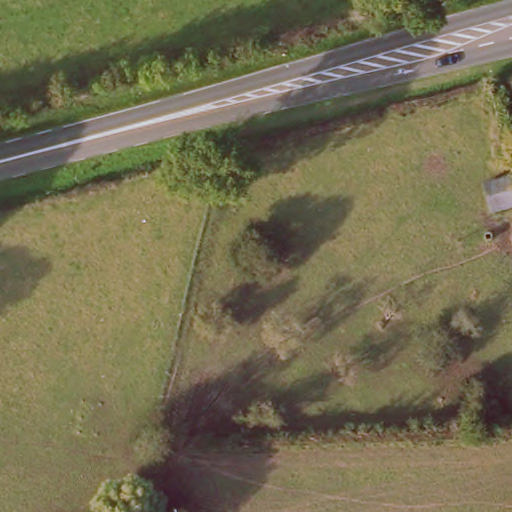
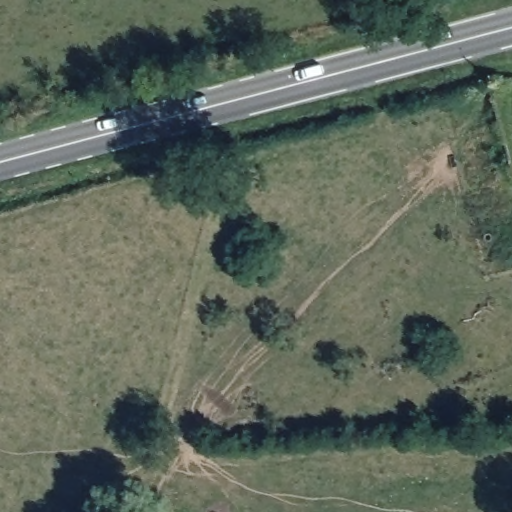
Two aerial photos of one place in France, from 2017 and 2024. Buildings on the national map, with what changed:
[]

